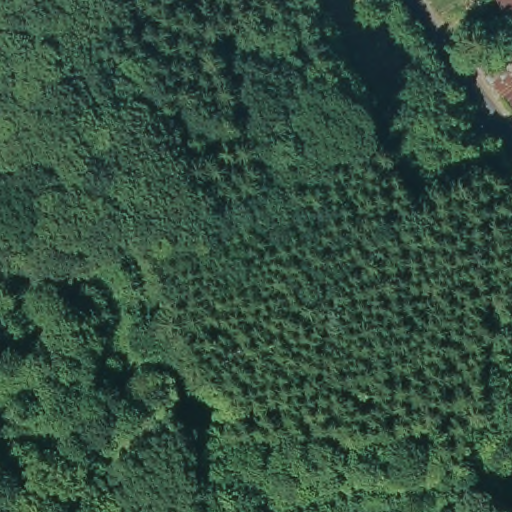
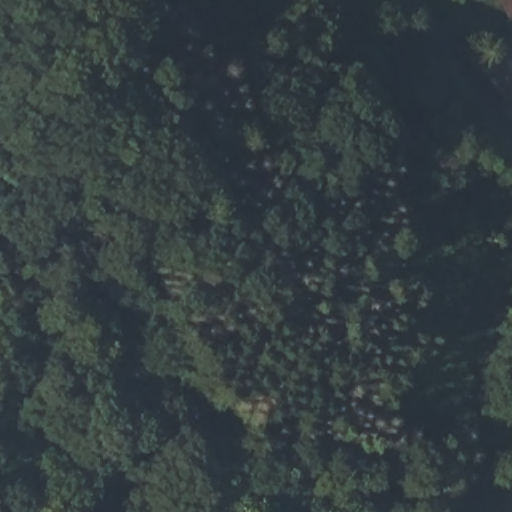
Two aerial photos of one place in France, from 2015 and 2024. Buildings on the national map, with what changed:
unchanged [(492,0),(512,0),(512,34),(508,36),(492,0)]
unchanged [(497,101),(475,64),(512,40),(512,91),(497,101)]

